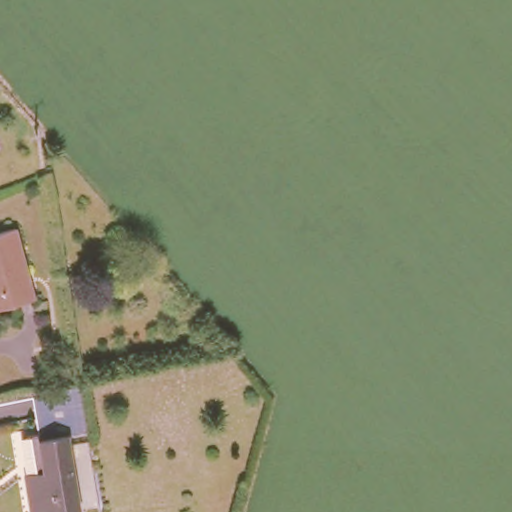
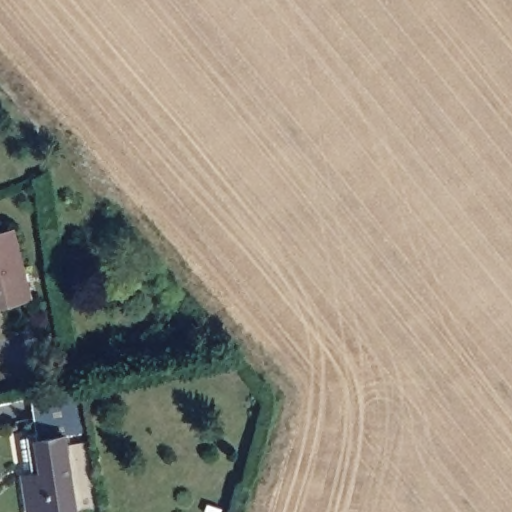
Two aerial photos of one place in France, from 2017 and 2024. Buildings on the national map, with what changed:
unchanged [(0,305),(0,229),(5,227),(25,298),(0,305)]
unchanged [(51,477),(57,512),(20,512),(33,509),(32,504),(29,504),(17,438),(65,427),(72,473),(51,477)]

